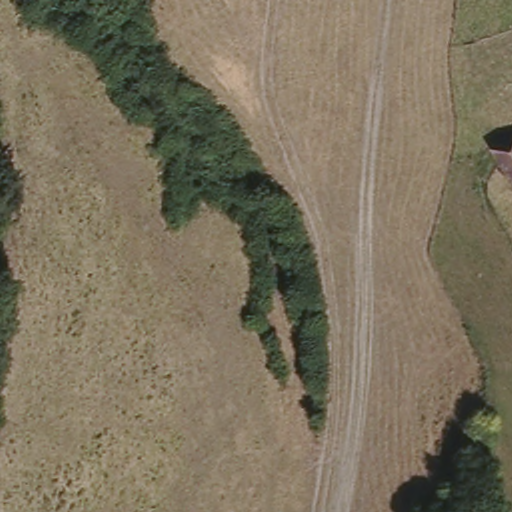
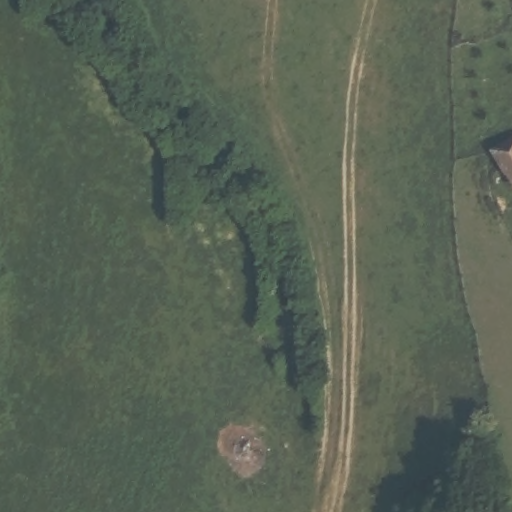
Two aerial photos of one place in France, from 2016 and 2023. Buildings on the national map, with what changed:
unchanged [(512,131),(512,185),(510,185),(489,142),(512,131)]

